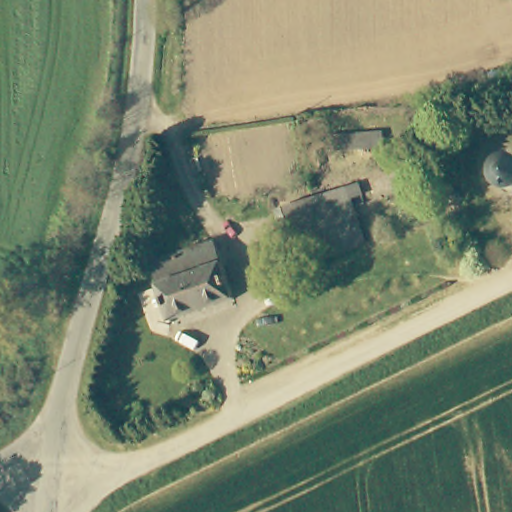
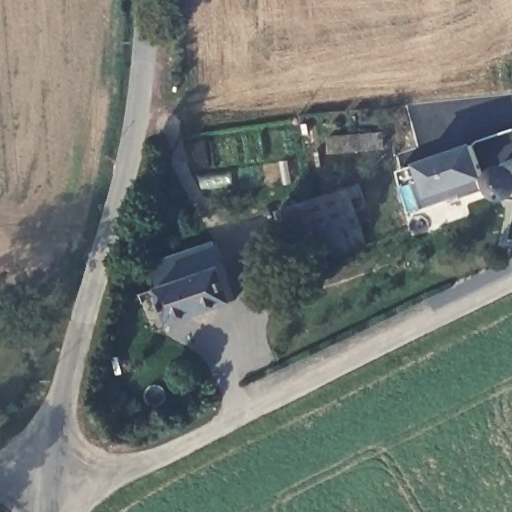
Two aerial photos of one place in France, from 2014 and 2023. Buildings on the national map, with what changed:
unchanged [(336,139),(356,138),(388,137),(389,151),(358,153),(336,155),(336,139)]
new [(489,177),(485,179),(487,189),(465,196),(464,194),(425,207),(416,182),(424,179),(418,161),(476,140),(489,177)]
unchanged [(505,184),(502,177),(502,162),(509,157),(512,155),(512,190),(505,184)]
unchanged [(298,268),(289,237),(284,239),(274,207),(343,186),(355,182),(359,192),(346,196),(362,249),(298,268)]
unchanged [(233,303),(170,322),(158,287),(152,265),(156,263),(172,258),(200,250),(215,246),(233,303)]

